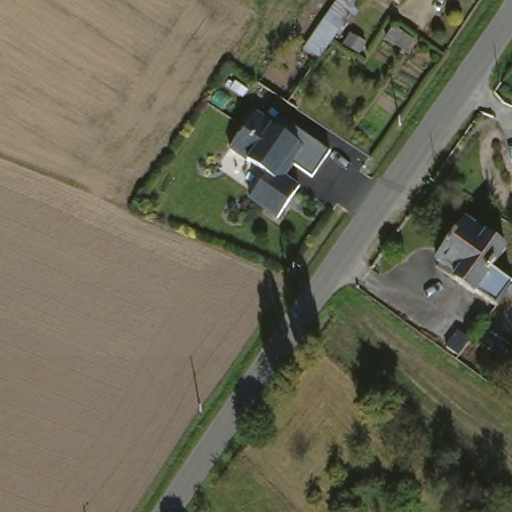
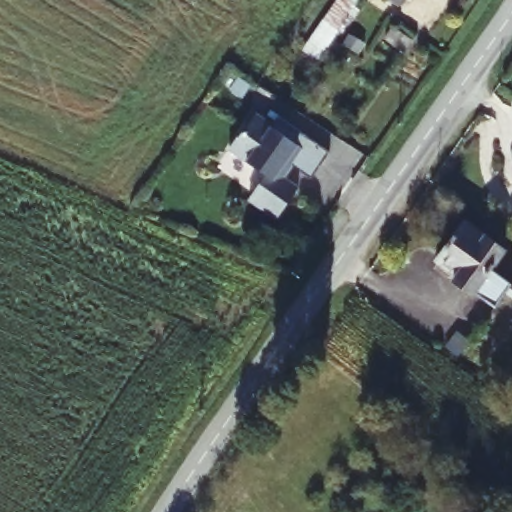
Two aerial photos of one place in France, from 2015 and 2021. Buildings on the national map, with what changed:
unchanged [(296,51),(331,0),(358,0),(314,64),(296,51)]
unchanged [(399,0),(397,3),(393,0),(399,0)]
unchanged [(336,142),(317,169),(298,156),(289,168),(304,179),(282,210),(254,190),(271,166),(234,140),(252,114),(253,115),(261,104),(277,115),(284,106),(336,142)]
unchanged [(512,285),(501,300),(446,261),(453,251),(447,246),(473,209),(512,236),(512,242),(498,261),(512,271),(512,285)]

